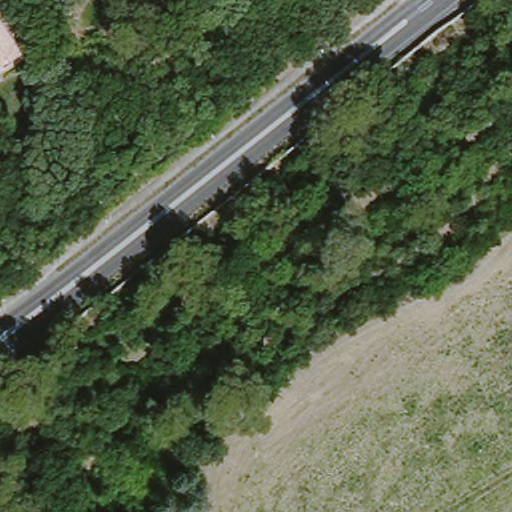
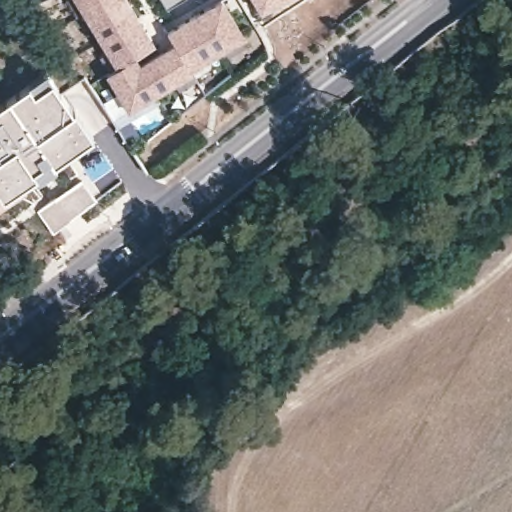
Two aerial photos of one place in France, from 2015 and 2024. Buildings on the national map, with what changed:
new [(74,0),(102,0),(82,12),(74,0)]
new [(124,0),(135,17),(99,40),(82,12),(102,0),(124,0)]
new [(159,0),(180,0),(165,9),(159,0)]
new [(220,0),(242,36),(216,52),(193,16),(220,0)]
new [(255,0),(278,0),(261,10),(255,0)]
demolished [(2,64),(0,61),(0,3),(28,50),(2,64)]
new [(193,16),(216,52),(189,69),(173,44),(166,33),(193,16)]
new [(135,17),(152,45),(132,57),(116,67),(99,40),(135,17)]
new [(173,44),(189,69),(190,71),(155,93),(138,66),(173,44)]
new [(116,67),(132,57),(138,66),(155,93),(128,110),(105,74),(116,67)]
new [(0,107),(30,86),(36,94),(53,81),(75,112),(76,111),(93,136),(24,187),(26,191),(0,209),(0,107)]

